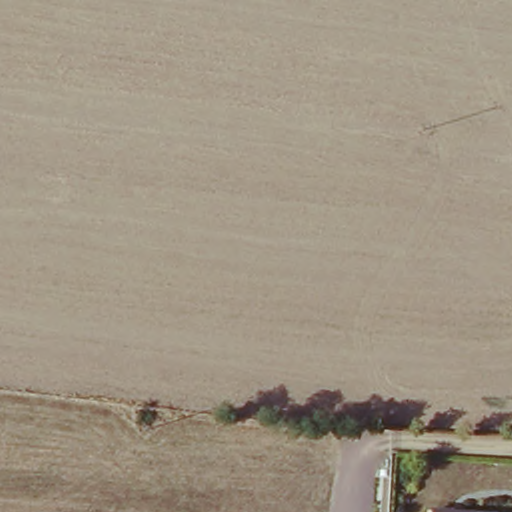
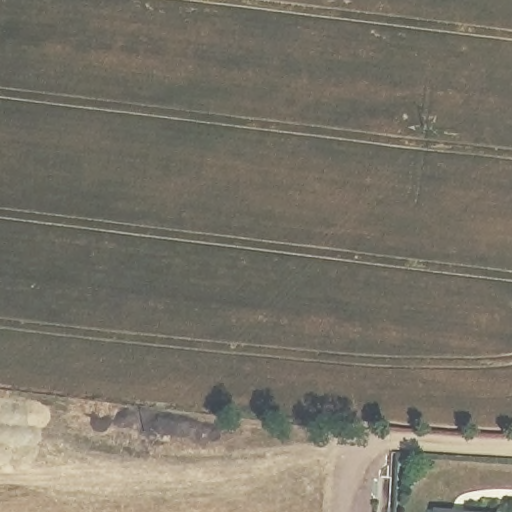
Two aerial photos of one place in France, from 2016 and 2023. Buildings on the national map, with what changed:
unchanged [(435,512),(426,512),(426,511),(435,512)]

